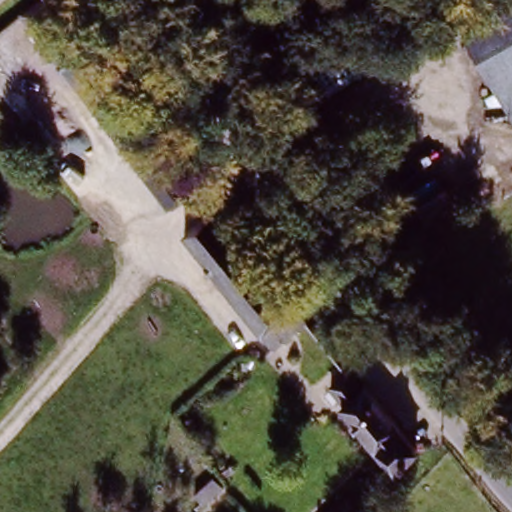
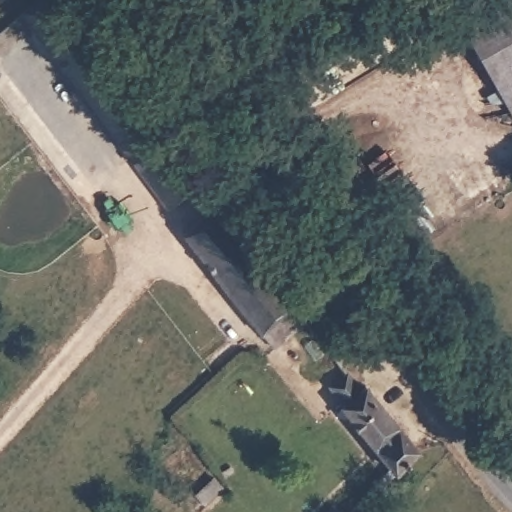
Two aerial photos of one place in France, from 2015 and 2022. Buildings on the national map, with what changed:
unchanged [(503,0),(512,0),(512,110),(463,22),(503,0)]
unchanged [(178,217),(22,28),(24,26),(50,2),(205,195),(178,217)]
unchanged [(252,330),(175,233),(207,208),(213,203),(287,300),(302,319),(265,345),(252,330)]
unchanged [(355,395),(365,389),(414,451),(390,470),(361,430),(357,433),(336,406),(355,395)]
unchanged [(341,512),(335,512),(337,510),(341,512)]

